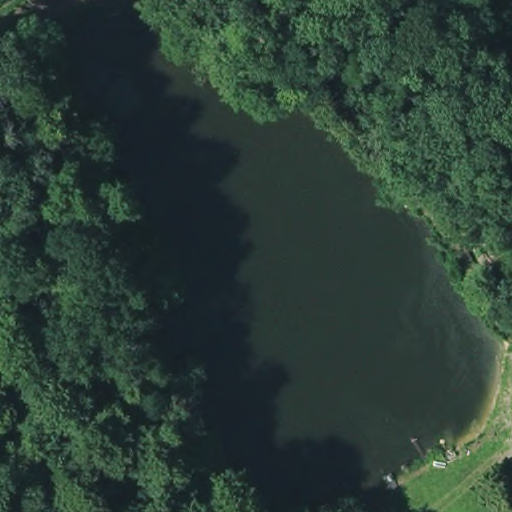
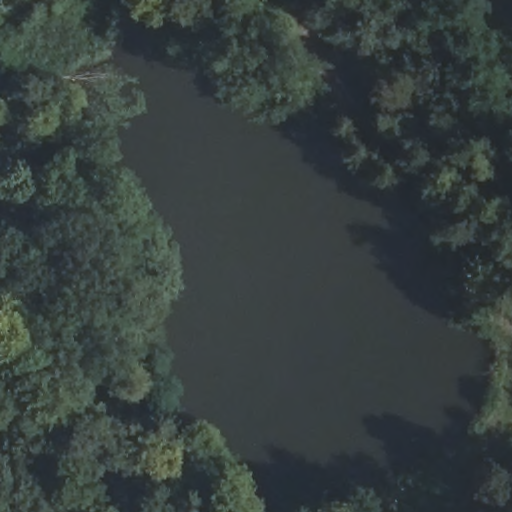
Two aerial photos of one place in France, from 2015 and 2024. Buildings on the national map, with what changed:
unchanged [(512,2),(511,0),(512,0),(512,2)]

